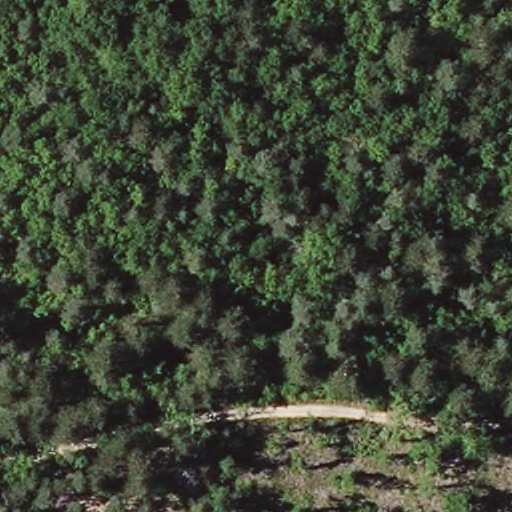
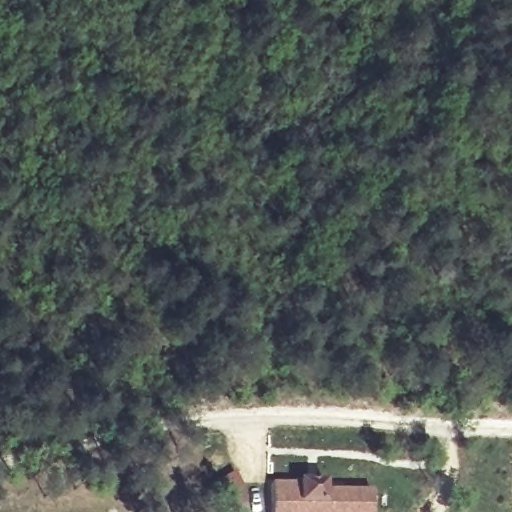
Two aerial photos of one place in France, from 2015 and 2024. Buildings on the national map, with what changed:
new [(369,512),(270,512),(272,484),(295,484),(295,482),(324,482),(324,489),(370,492),(369,512)]

